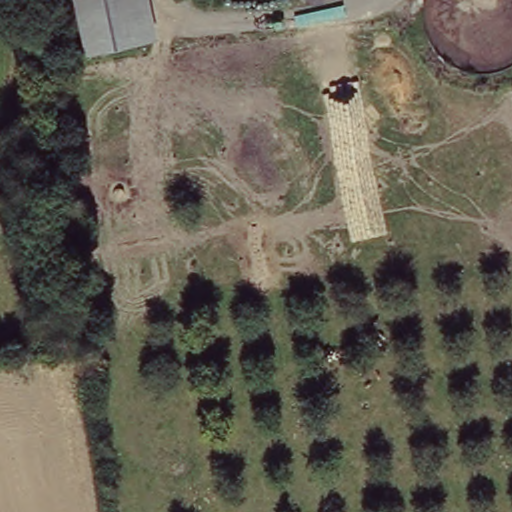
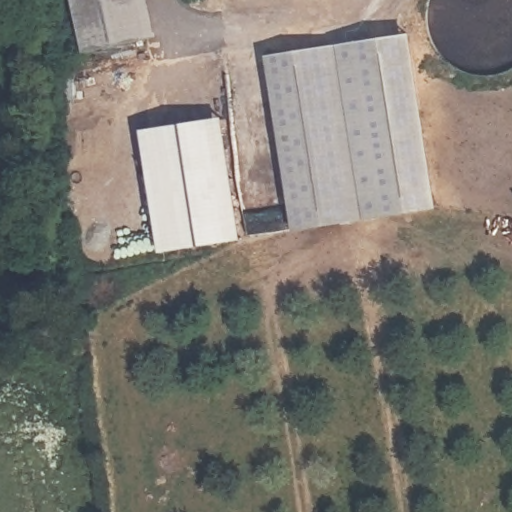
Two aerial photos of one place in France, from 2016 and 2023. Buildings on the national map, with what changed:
unchanged [(155,37),(82,53),(71,0),(147,0),(155,37)]
new [(410,34),(437,206),(295,228),(267,54),(410,34)]

